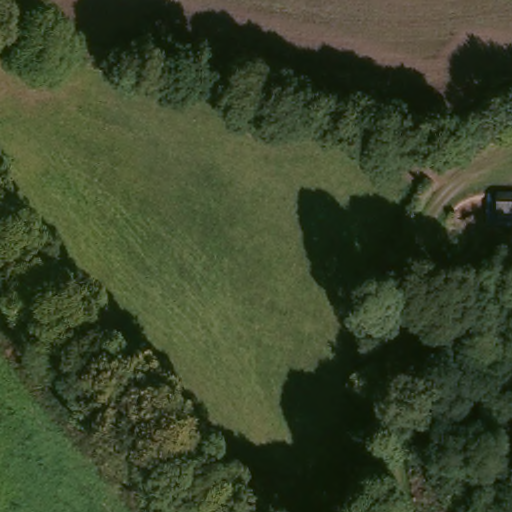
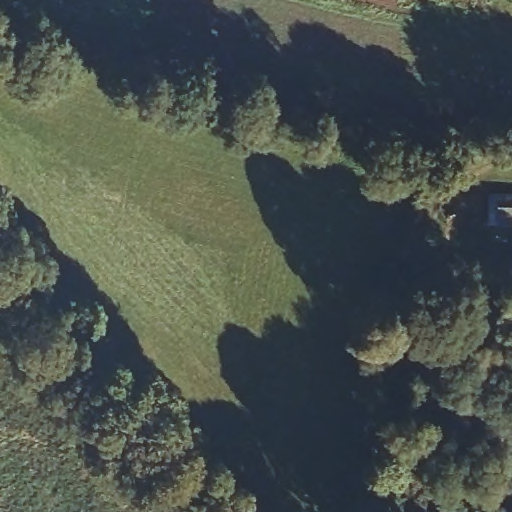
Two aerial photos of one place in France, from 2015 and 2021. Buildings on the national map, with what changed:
unchanged [(496,213),(498,191),(512,191),(512,214),(496,213)]

